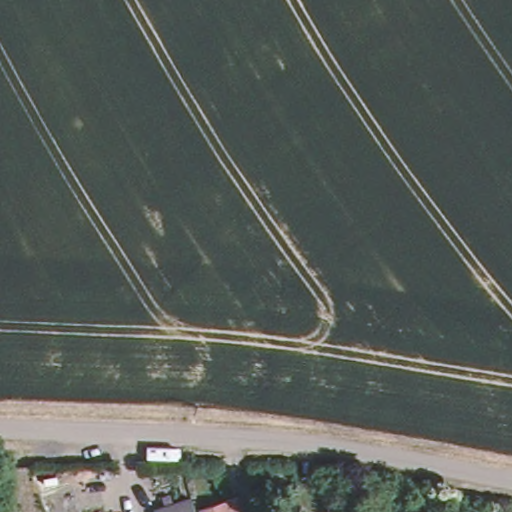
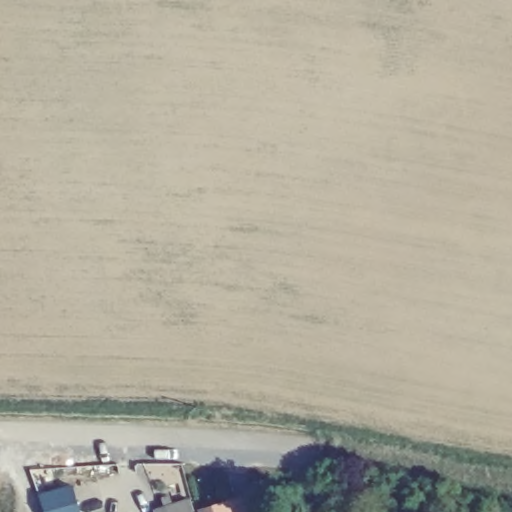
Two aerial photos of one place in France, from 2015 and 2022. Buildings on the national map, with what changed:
unchanged [(199,510),(197,505),(232,492),(239,512),(197,512),(196,511),(199,510)]
unchanged [(184,494),(189,512),(150,512),(148,506),(184,494)]

